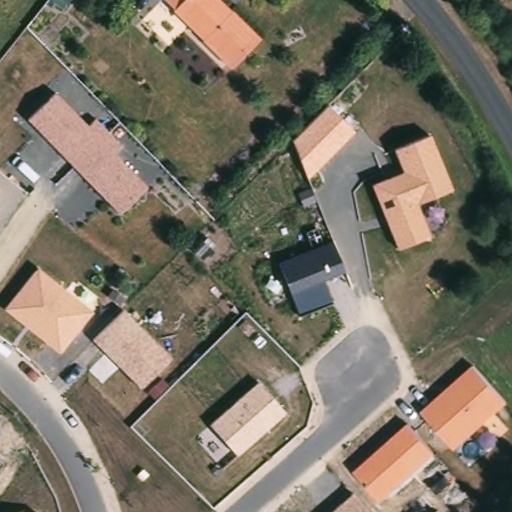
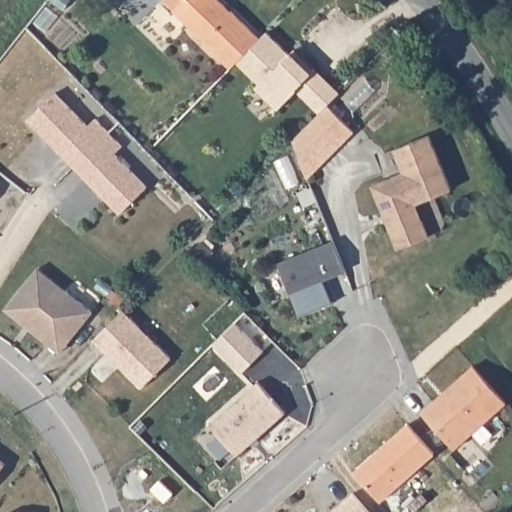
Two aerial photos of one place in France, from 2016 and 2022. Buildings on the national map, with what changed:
unchanged [(230,67),(165,0),(221,0),(260,37),(230,67)]
new [(260,37),(267,31),(291,52),(295,48),(341,91),(327,105),(319,114),(296,90),(277,110),(255,87),(259,84),(236,61),(260,37)]
unchanged [(27,120),(56,91),(87,125),(97,117),(124,145),(116,155),(147,187),(120,214),(27,120)]
unchanged [(356,133),(307,180),(293,140),(327,105),(356,133)]
unchanged [(450,189),(417,200),(429,235),(396,247),(371,185),(402,172),(393,148),(428,136),(450,189)]
unchanged [(279,261),(332,242),(343,273),(323,280),(331,302),(298,315),(279,261)]
unchanged [(3,309),(37,266),(93,311),(59,355),(3,309)]
unchanged [(125,310),(171,359),(139,387),(94,340),(125,310)]
new [(235,322),(262,350),(242,371),(213,343),(235,322)]
unchanged [(506,403),(455,449),(420,410),(473,365),(506,403)]
unchanged [(285,413),(237,456),(209,423),(257,382),(285,413)]
unchanged [(407,424),(436,454),(380,502),(353,472),(407,424)]
new [(5,465),(0,471),(0,461),(5,465)]
unchanged [(352,491),(370,512),(331,512),(352,491)]

